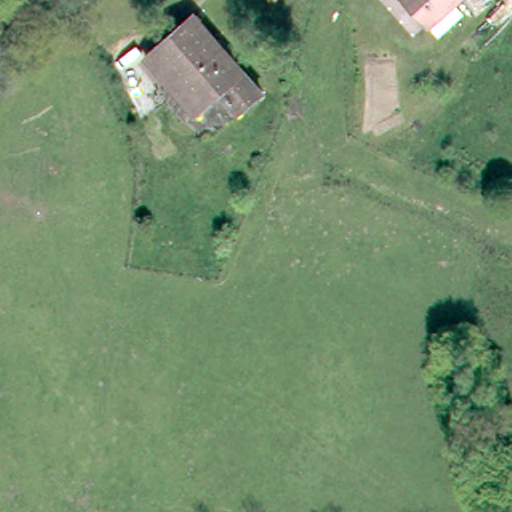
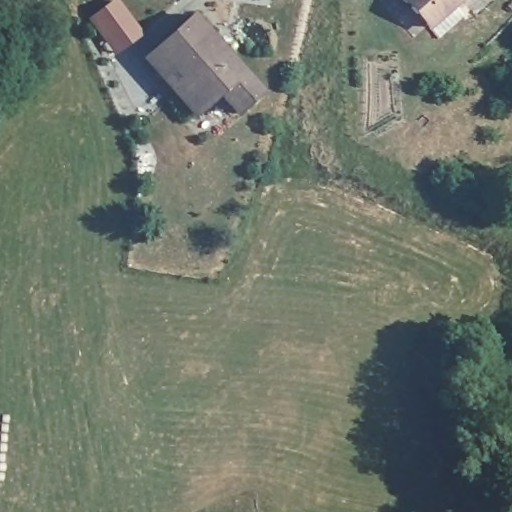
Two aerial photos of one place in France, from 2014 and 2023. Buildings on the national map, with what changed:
new [(118,0),(144,34),(115,56),(87,19),(113,0),(118,0)]
unchanged [(269,0),(278,0),(277,4),(269,0)]
unchanged [(405,5),(399,0),(461,0),(434,31),(405,5)]
unchanged [(172,113),(134,67),(199,9),(266,91),(247,110),(214,76),(172,113)]

